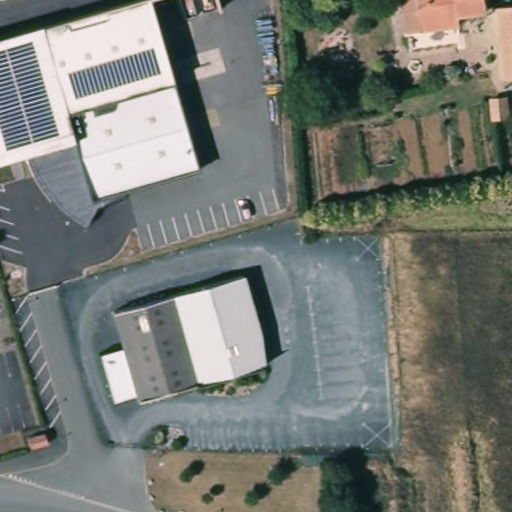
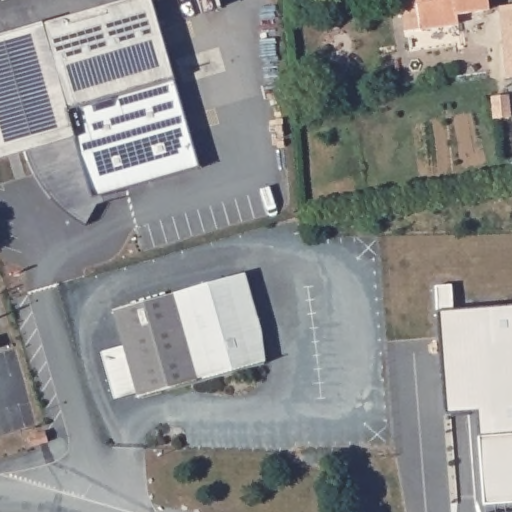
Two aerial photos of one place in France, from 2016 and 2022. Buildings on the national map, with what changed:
unchanged [(172,83),(65,114),(69,129),(26,141),(26,143),(28,151),(0,159),(0,36),(133,0),(148,0),(172,83)]
unchanged [(492,15),(457,23),(457,31),(402,35),(396,0),(489,0),(492,15)]
new [(512,13),(512,83),(503,84),(497,14),(512,13)]
unchanged [(196,168),(101,195),(84,225),(70,215),(57,204),(46,191),(37,176),(31,160),(26,143),(26,141),(69,129),(65,114),(172,83),(196,168)]
unchanged [(245,277),(262,334),(263,362),(195,381),(172,293),(245,277)]
unchanged [(195,381),(134,399),(107,310),(172,293),(195,381)]
new [(512,305),(512,502),(476,505),(468,414),(437,417),(428,312),(512,305)]
unchanged [(44,431),(45,440),(30,443),(28,433),(44,431)]

